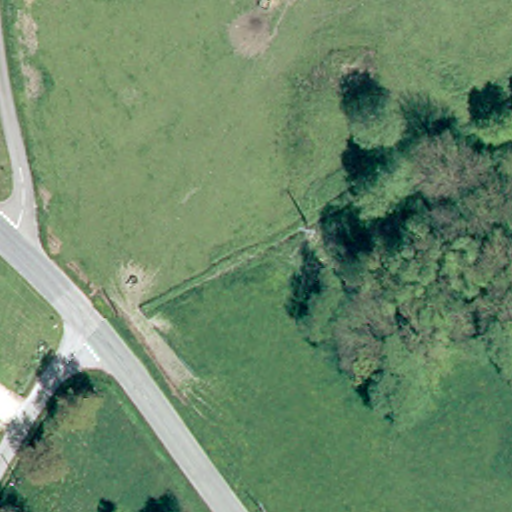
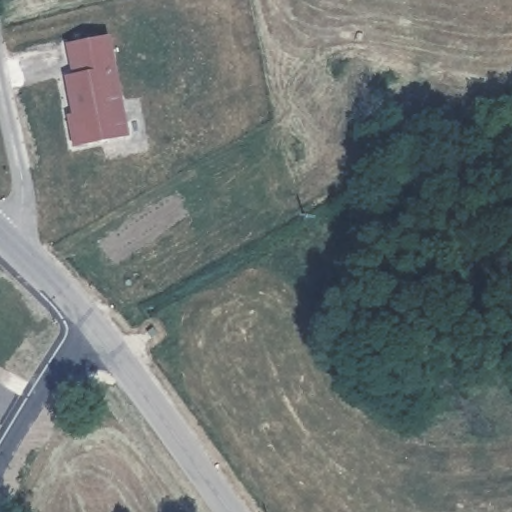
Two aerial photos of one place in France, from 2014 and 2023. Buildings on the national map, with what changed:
new [(109,35),(129,136),(73,147),(66,117),(69,116),(62,77),(70,75),(65,44),(109,35)]

